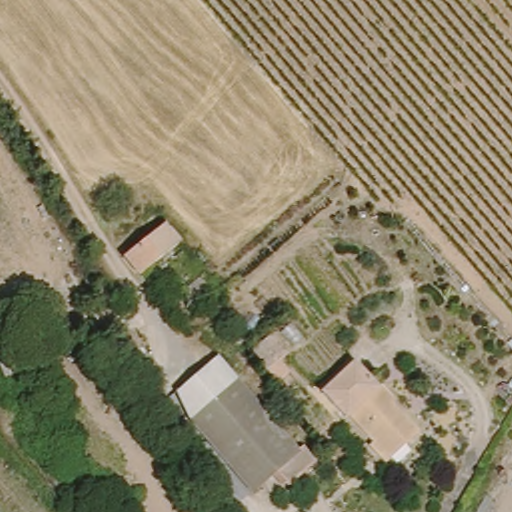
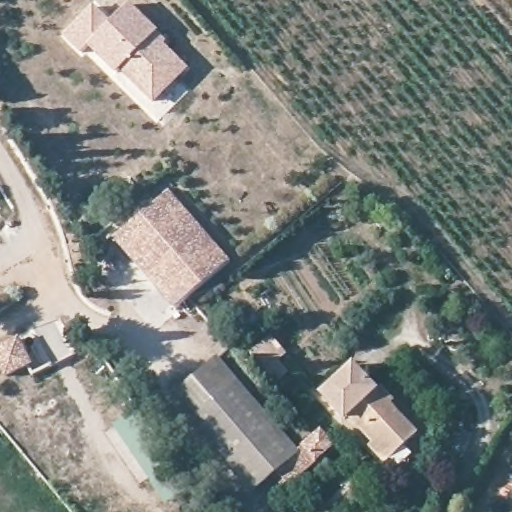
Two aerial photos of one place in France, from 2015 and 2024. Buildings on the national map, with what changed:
new [(155,106),(120,71),(116,76),(88,48),(82,54),(63,37),(93,5),(112,23),(129,4),(158,32),(168,43),(166,46),(189,70),(155,106)]
new [(114,242),(171,193),(233,263),(174,312),(114,242)]
demolished [(125,257),(165,227),(180,246),(139,276),(125,257)]
unchanged [(7,375),(0,354),(0,338),(19,332),(30,366),(7,375)]
unchanged [(277,359),(264,370),(255,358),(268,348),(277,359)]
new [(190,420),(173,396),(216,356),(235,378),(190,420)]
unchanged [(368,438),(344,412),(340,415),(317,390),(349,360),(372,386),(375,383),(389,398),(386,401),(413,430),(400,441),(411,453),(391,470),(381,460),(364,441),(368,438)]
unchanged [(290,481),(278,467),(253,489),(190,420),(235,378),(299,447),(304,442),(317,456),(290,481)]
new [(173,460),(148,477),(113,425),(136,408),(173,460)]

